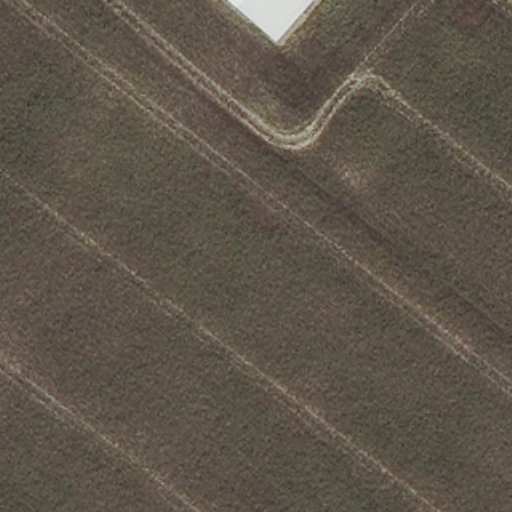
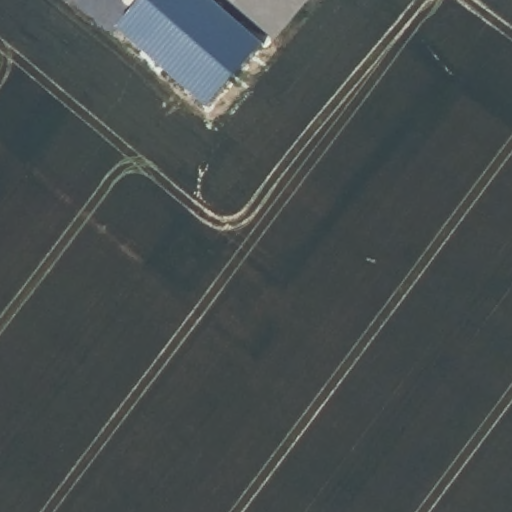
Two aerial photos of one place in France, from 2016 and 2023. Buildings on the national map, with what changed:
new [(265,44),(210,108),(119,28),(144,0),(215,0),(265,44)]
unchanged [(277,41),(232,0),(313,0),(277,41)]

